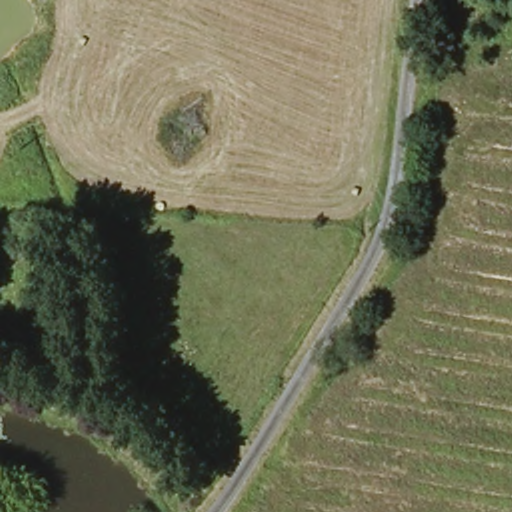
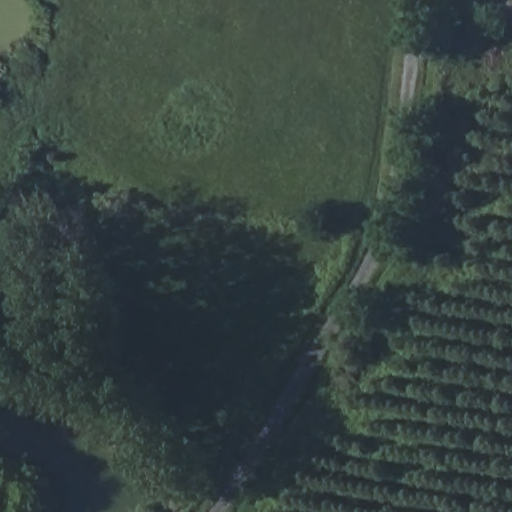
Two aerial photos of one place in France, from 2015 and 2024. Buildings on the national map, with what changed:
[]

